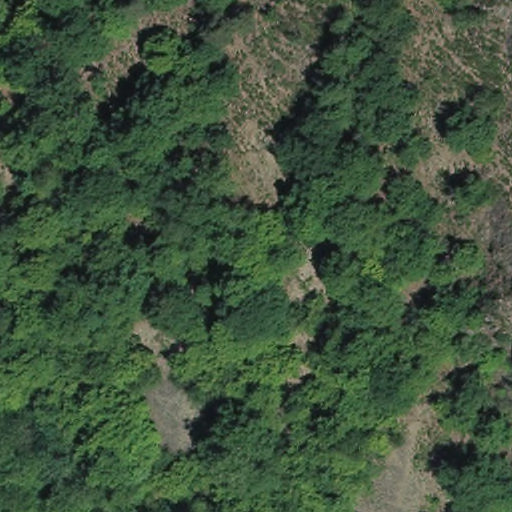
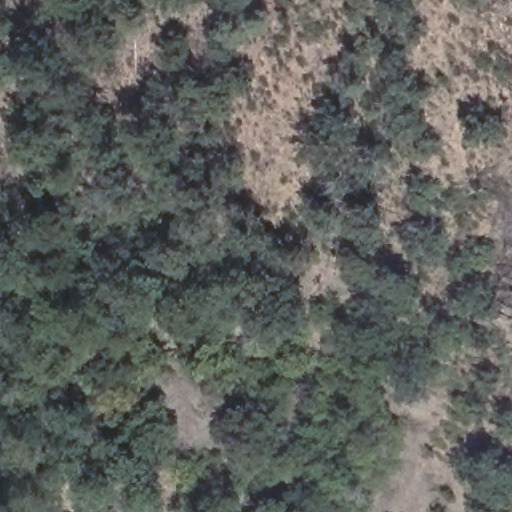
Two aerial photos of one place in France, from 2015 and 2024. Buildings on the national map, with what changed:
[]

